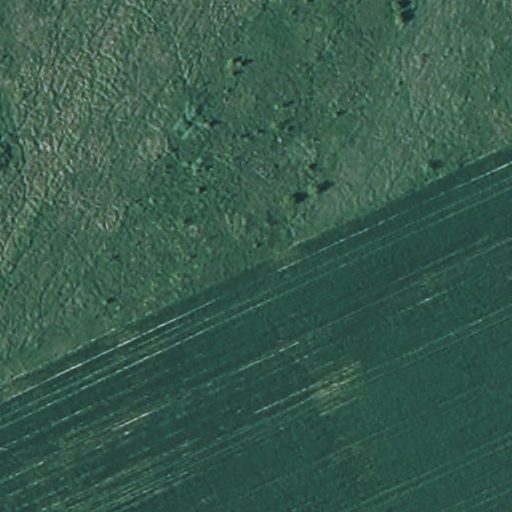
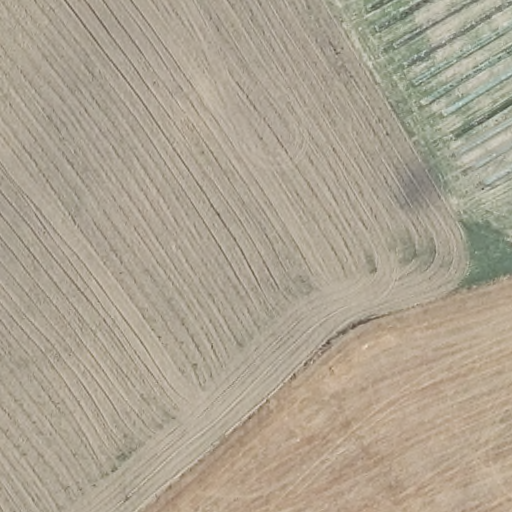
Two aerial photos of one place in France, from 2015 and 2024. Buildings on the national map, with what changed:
[]

